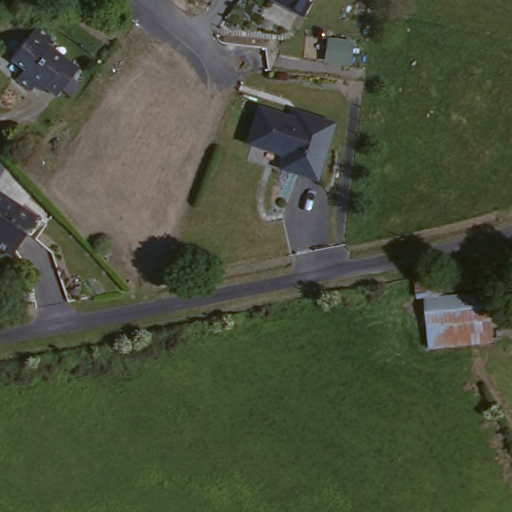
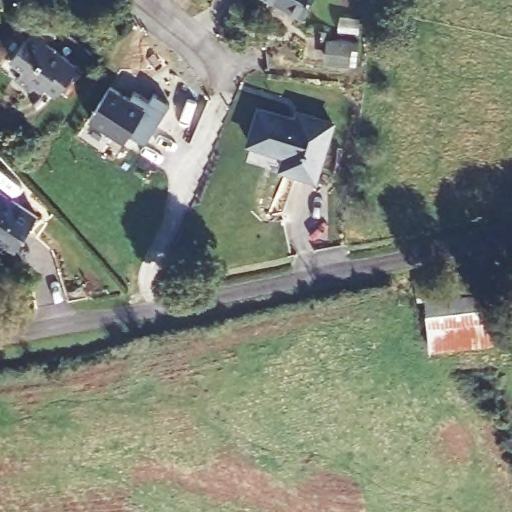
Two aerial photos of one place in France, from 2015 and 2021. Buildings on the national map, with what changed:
unchanged [(300,21),(271,0),(314,0),(300,21)]
unchanged [(39,24),(52,35),(47,41),(77,69),(53,97),(39,84),(34,88),(28,84),(25,86),(15,76),(24,66),(11,56),(39,24)]
new [(171,102),(145,144),(132,134),(127,139),(91,116),(111,83),(130,96),(134,89),(150,99),(155,92),(171,102)]
unchanged [(283,170),(287,157),(250,146),(260,112),(297,123),(298,116),(332,126),(317,180),(283,170)]
unchanged [(40,214),(14,255),(0,245),(0,188),(40,214)]
unchanged [(491,348),(433,350),(431,301),(423,301),(420,281),(441,277),(445,299),(493,298),(491,348)]

